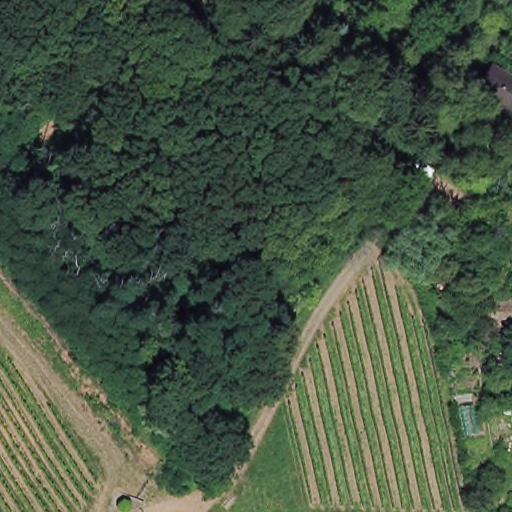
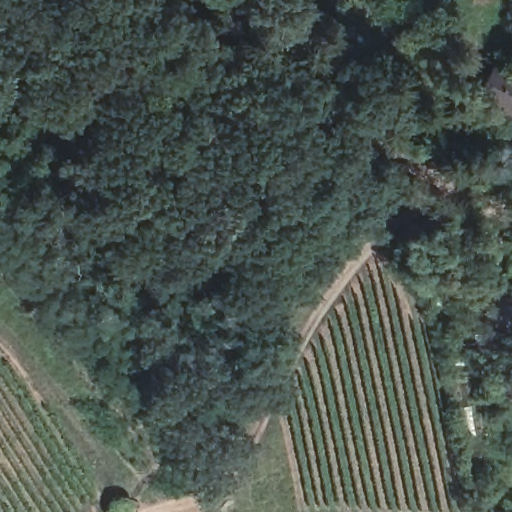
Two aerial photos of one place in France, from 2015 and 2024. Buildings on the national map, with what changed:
unchanged [(512,81),(512,115),(510,117),(492,107),(474,97),(490,68),(503,76),(512,81)]
unchanged [(480,332),(480,294),(512,294),(512,332),(480,332)]

